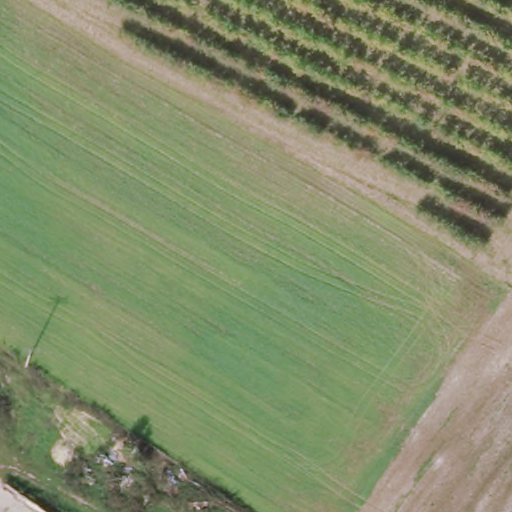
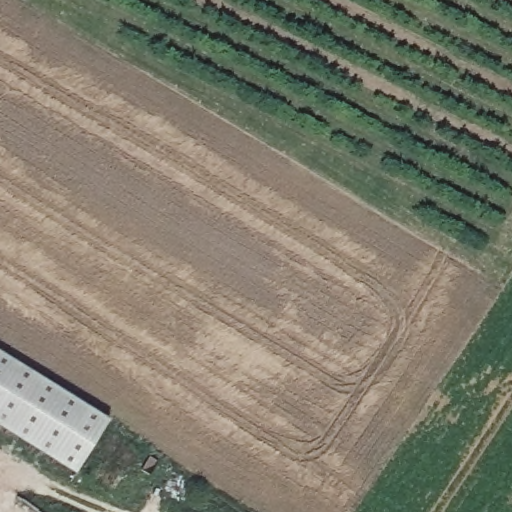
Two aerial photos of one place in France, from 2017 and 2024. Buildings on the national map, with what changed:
new [(23,363),(0,398),(0,348),(23,363)]
demolished [(80,406),(108,425),(75,481),(44,463),(0,433),(0,353),(80,406)]
new [(111,418),(76,473),(0,426),(0,398),(23,363),(111,418)]

